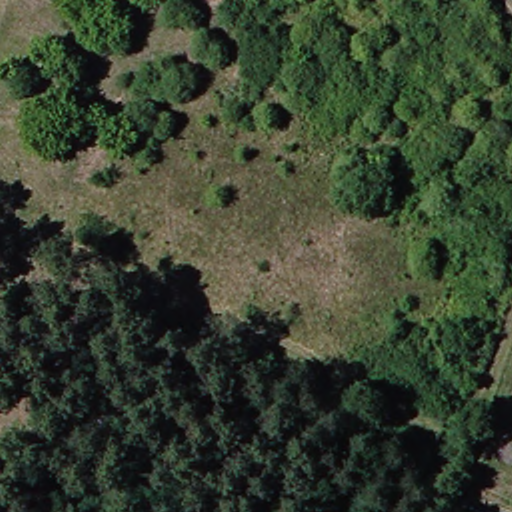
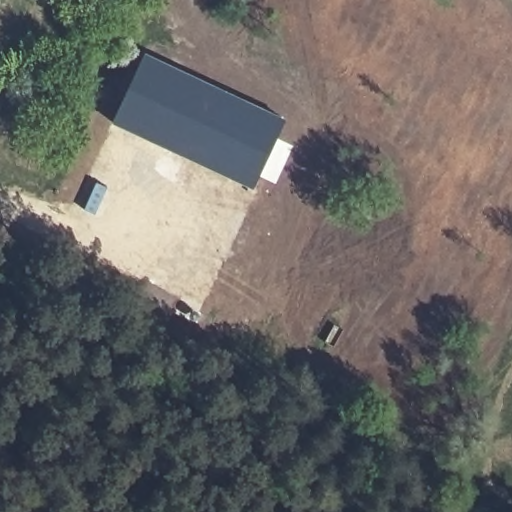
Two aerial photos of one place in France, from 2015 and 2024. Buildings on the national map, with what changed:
new [(254,189),(112,122),(142,52),(286,120),(254,189)]

